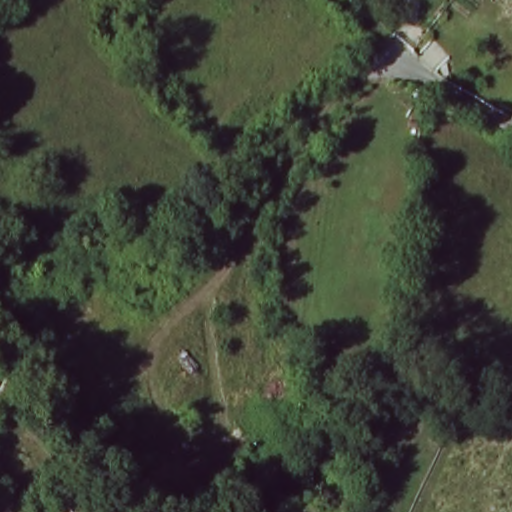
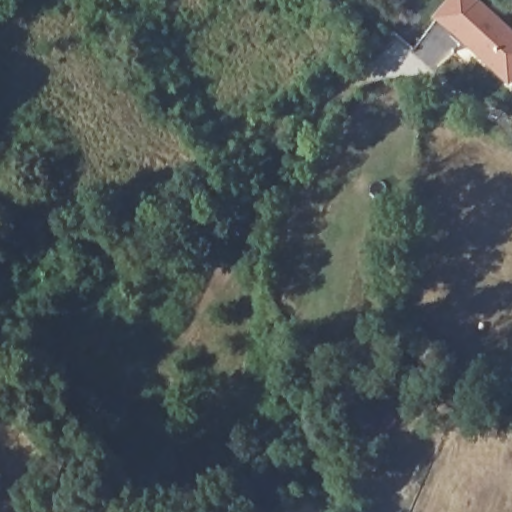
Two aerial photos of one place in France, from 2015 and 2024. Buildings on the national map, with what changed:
new [(509,87),(433,19),(449,0),(477,0),(512,31),(512,84),(509,87)]

